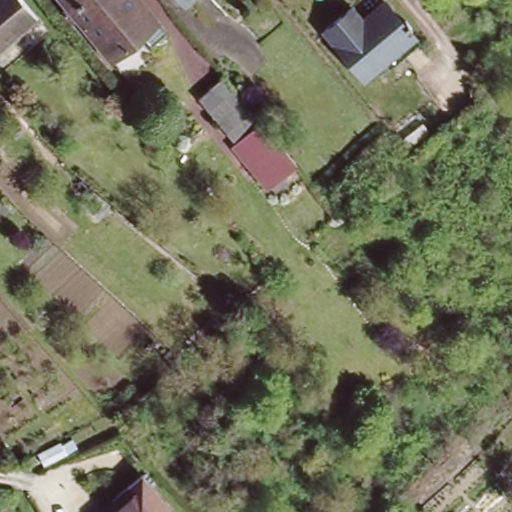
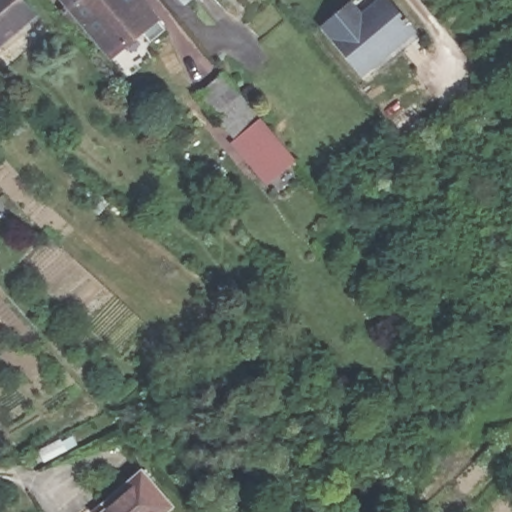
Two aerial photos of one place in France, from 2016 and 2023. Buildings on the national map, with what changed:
unchanged [(36,15),(0,47),(0,0),(23,0),(36,15)]
unchanged [(163,22),(148,36),(138,25),(108,51),(64,0),(144,0),(163,22)]
unchanged [(177,0),(186,0),(181,4),(177,0)]
unchanged [(363,7),(373,0),(390,0),(415,28),(365,69),(325,21),(351,0),(357,0),(363,7)]
unchanged [(265,181),(192,95),(216,75),(288,162),(265,181)]
unchanged [(512,389),(512,391),(511,390),(512,389)]
unchanged [(454,463),(446,471),(438,465),(446,456),(454,463)]
unchanged [(92,512),(100,505),(96,499),(105,491),(136,466),(165,500),(151,512),(92,512)]

